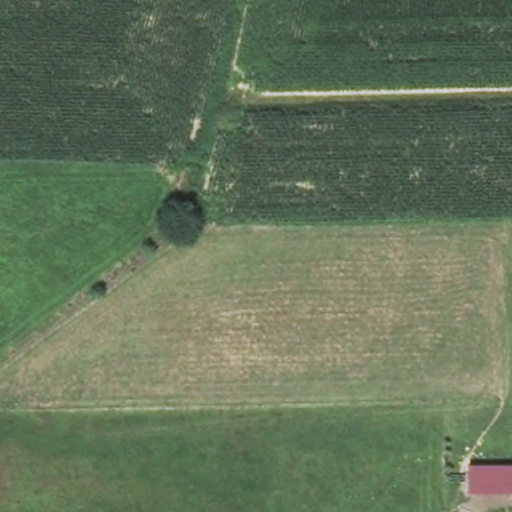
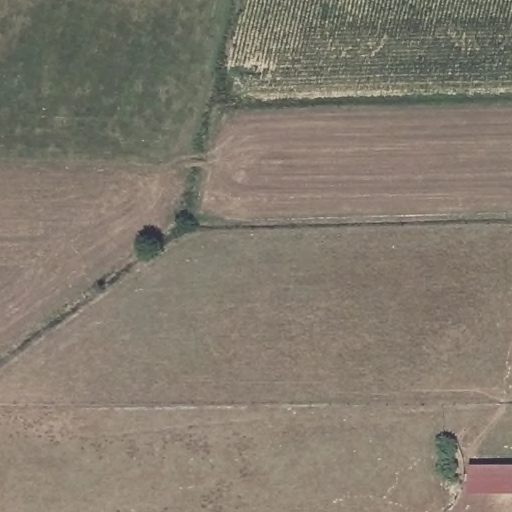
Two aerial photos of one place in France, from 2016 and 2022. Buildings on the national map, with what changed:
unchanged [(468,466),(512,464),(512,490),(470,491),(468,466)]

